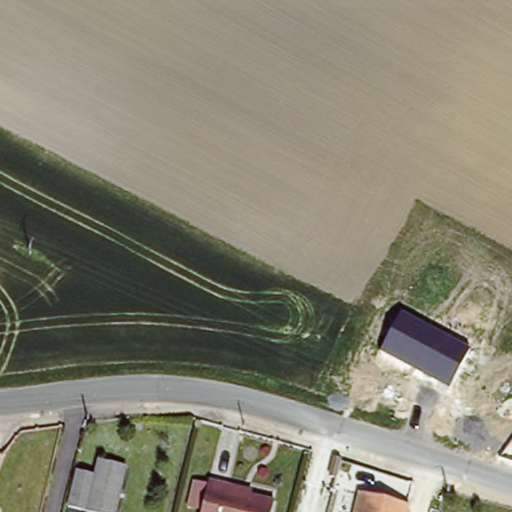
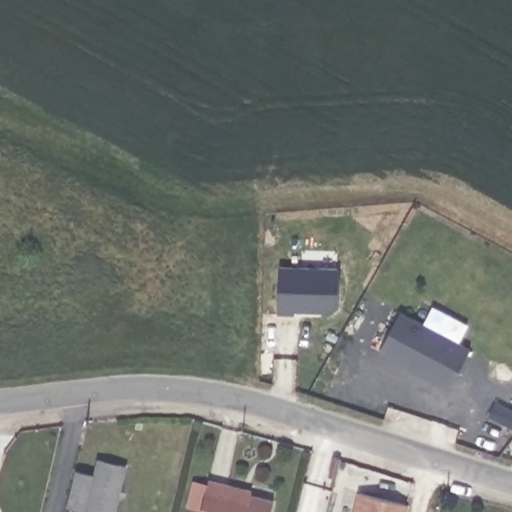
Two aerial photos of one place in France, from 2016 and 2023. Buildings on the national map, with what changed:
new [(338,268),(338,309),(332,313),(294,312),(294,315),(277,314),(278,268),(338,268)]
unchanged [(380,352),(400,311),(470,349),(450,389),(380,352)]
unchanged [(125,464),(114,512),(101,512),(87,509),(99,458),(125,464)]
unchanged [(77,467),(93,471),(84,506),(68,502),(77,467)]
unchanged [(271,498),(268,512),(196,512),(205,474),(220,479),(224,480),(222,485),(271,498)]
unchanged [(407,506),(405,512),(352,512),(357,493),(407,506)]

